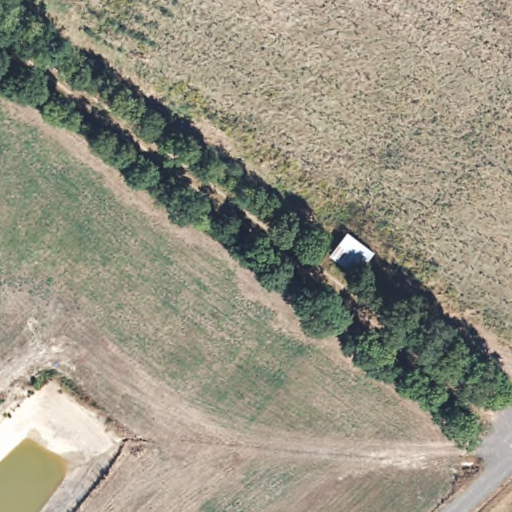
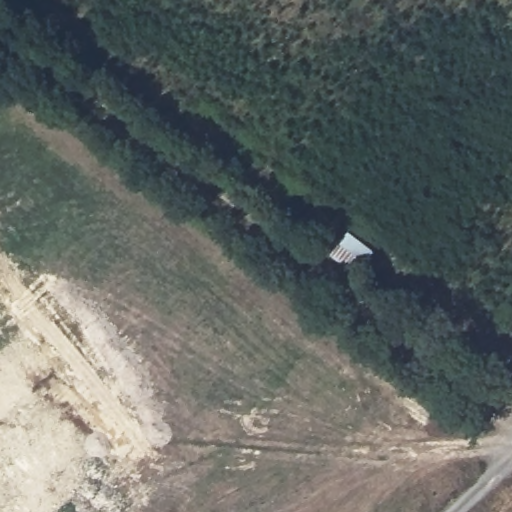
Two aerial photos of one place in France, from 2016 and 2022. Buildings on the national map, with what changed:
unchanged [(372,255),(352,277),(325,256),(343,232),(372,255)]

